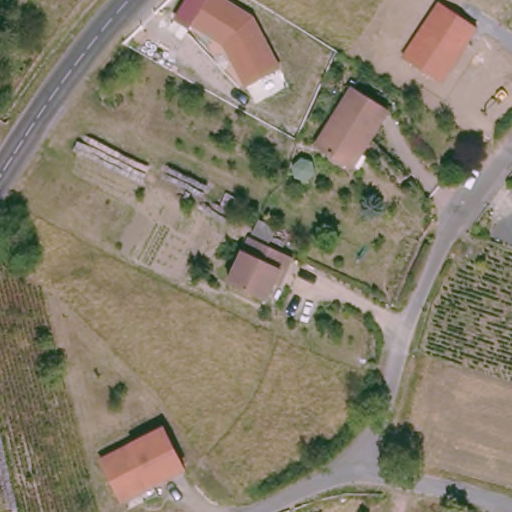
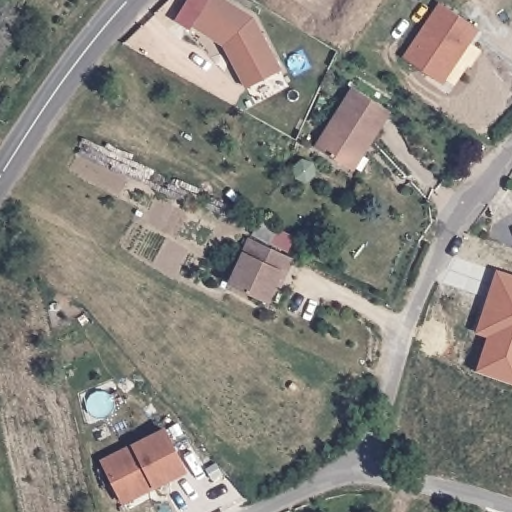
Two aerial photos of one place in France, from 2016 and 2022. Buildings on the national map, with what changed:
unchanged [(209,0),(230,0),(259,16),(285,68),(248,90),(225,46),(194,26),(209,0)]
unchanged [(402,57),(439,1),(479,28),(442,82),(402,57)]
unchanged [(330,120),(351,84),(387,105),(370,135),(365,132),(360,140),(330,120)]
unchanged [(360,140),(346,164),(314,145),(330,120),(360,140)]
unchanged [(259,220),(276,228),(270,240),(253,232),(259,220)]
unchanged [(286,271),(281,268),(267,300),(230,282),(252,237),(292,256),(286,271)]
new [(475,371),(487,337),(475,333),(496,270),(512,276),(512,383),(475,371)]
unchanged [(117,487),(102,456),(164,424),(185,464),(152,480),(122,496),(117,487)]

